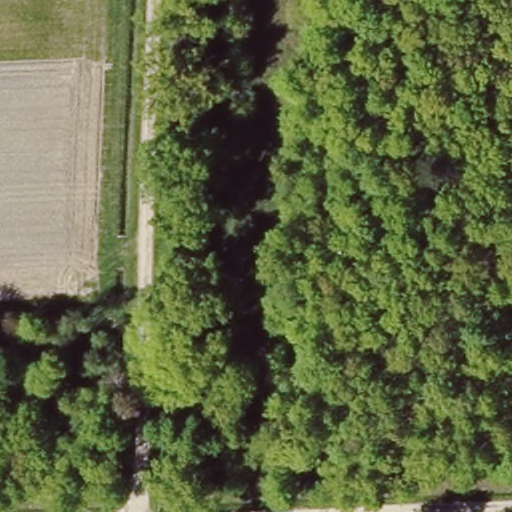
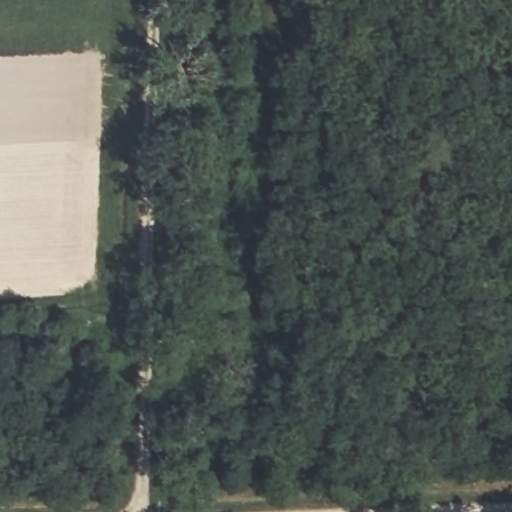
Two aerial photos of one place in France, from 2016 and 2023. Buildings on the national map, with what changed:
[]

